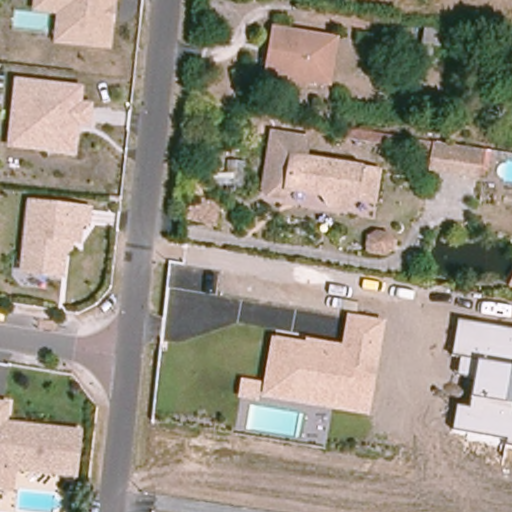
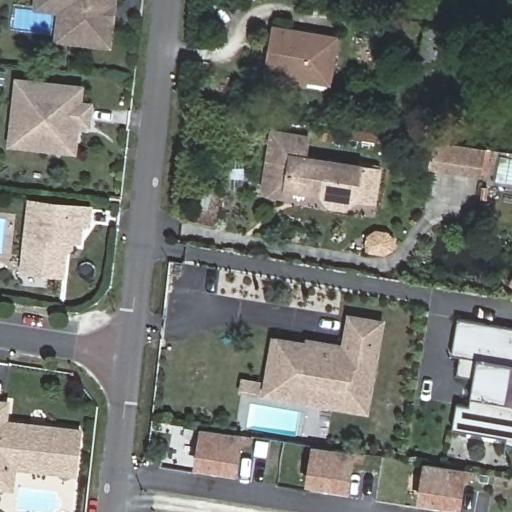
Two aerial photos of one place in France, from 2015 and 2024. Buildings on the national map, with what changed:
unchanged [(110,49),(54,43),(57,14),(33,11),(34,0),(116,0),(110,49)]
unchanged [(426,56),(416,54),(421,23),(448,28),(445,42),(429,40),(426,56)]
unchanged [(332,38),(325,82),(269,72),(275,29),(332,38)]
unchanged [(83,100),(94,102),(91,127),(80,125),(76,154),(8,147),(15,76),(84,84),(83,100)]
unchanged [(379,164),(376,196),(357,193),(357,194),(346,202),(333,200),(323,188),(295,184),(285,191),(269,188),(264,183),(274,127),(309,132),(307,153),(379,164)]
unchanged [(482,175),(469,173),(465,191),(452,189),(456,172),(424,166),(428,151),(379,142),(349,140),(350,127),(381,130),(430,138),(488,148),(482,175)]
unchanged [(90,227),(84,227),(82,244),(74,243),(74,250),(65,253),(64,277),(19,274),(26,198),(93,205),(90,227)]
unchanged [(219,225),(187,220),(190,199),(221,204),(219,225)]
unchanged [(394,247),(387,254),(375,254),(364,249),(364,238),(374,230),(389,231),(397,240),(394,247)]
unchanged [(506,286),(512,277),(512,290),(506,286)]
unchanged [(262,396),(274,338),(305,343),(307,338),(346,345),(352,314),(384,320),(368,413),(262,396)]
unchanged [(504,444),(506,437),(452,430),(457,404),(469,406),(471,396),(474,376),(458,374),(461,355),(453,354),(459,321),(512,329),(512,445),(504,444)]
unchanged [(77,476),(18,469),(15,492),(0,491),(0,399),(10,399),(8,419),(81,428),(77,476)]
new [(239,473),(194,466),(200,428),(245,434),(239,473)]
new [(351,490),(306,484),(312,445),(356,451),(351,490)]
new [(462,509),(418,501),(423,461),(467,468),(462,509)]

